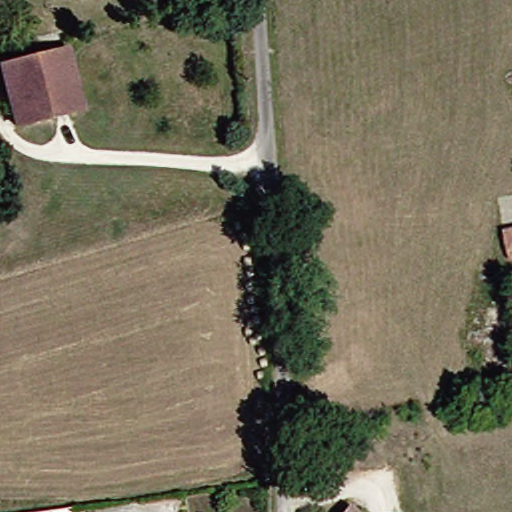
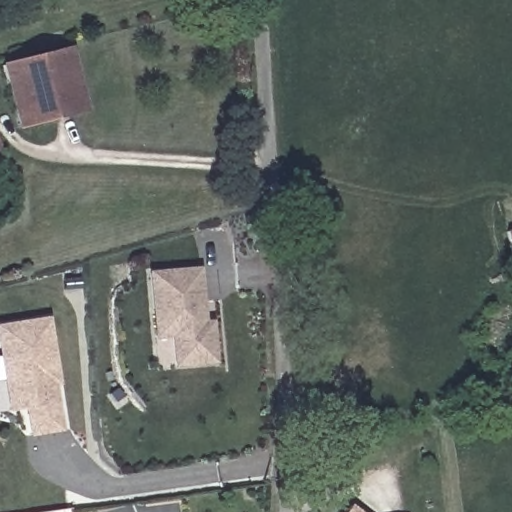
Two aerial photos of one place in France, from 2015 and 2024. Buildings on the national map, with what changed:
unchanged [(13,128),(0,82),(0,65),(61,50),(78,110),(13,128)]
new [(512,257),(506,231),(512,230),(512,257)]
new [(147,312),(145,275),(195,272),(196,291),(197,304),(198,326),(206,325),(207,366),(167,368),(166,337),(149,339),(147,312)]
new [(1,385),(0,377),(0,330),(47,324),(53,378),(55,389),(50,389),(56,435),(25,439),(21,412),(5,414),(1,385)]
unchanged [(347,498),(360,512),(331,512),(347,498)]

